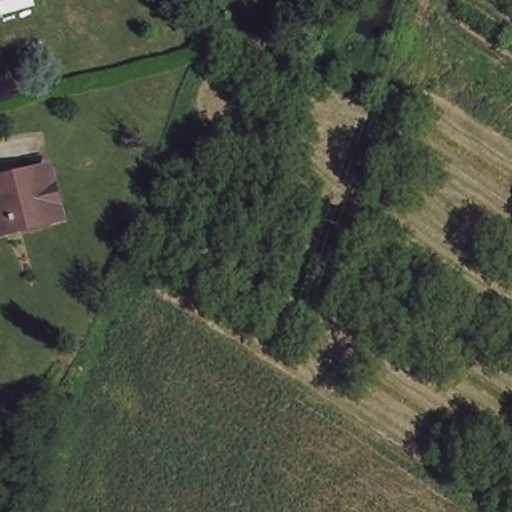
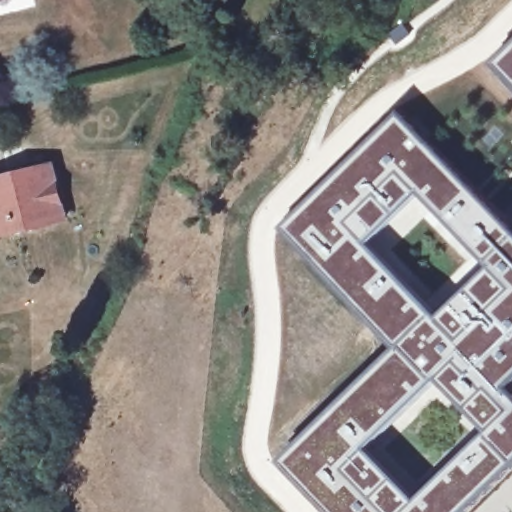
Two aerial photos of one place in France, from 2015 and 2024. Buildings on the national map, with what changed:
new [(512,41),(512,93),(486,66),(512,41)]
new [(395,351),(280,229),(393,114),(512,234),(512,377),(501,388),(512,400),(512,460),(461,512),(321,512),(275,465),(395,351)]
unchanged [(18,174),(21,181),(55,172),(63,206),(40,212),(44,228),(0,240),(0,179),(18,174)]

